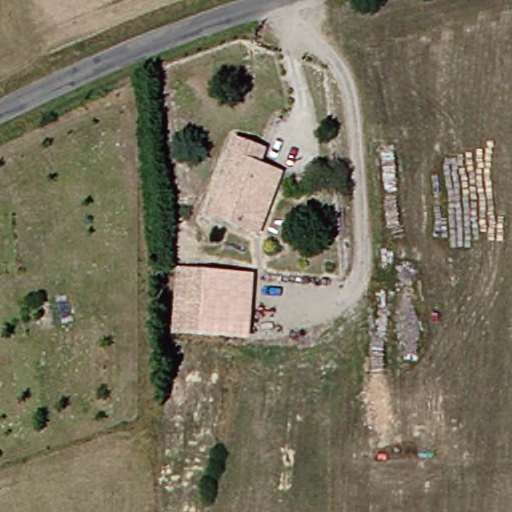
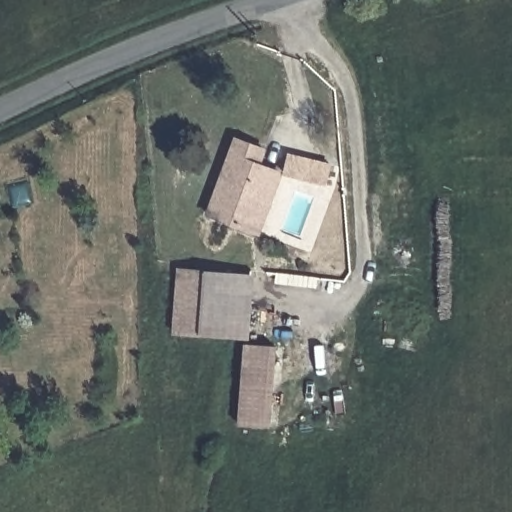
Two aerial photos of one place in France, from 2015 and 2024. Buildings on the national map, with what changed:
unchanged [(246,229),(209,210),(240,144),(260,155),(257,167),(278,178),(270,194),(254,233),(246,229)]
unchanged [(255,274),(250,340),(175,333),(179,269),(255,274)]
new [(275,346),(270,425),(239,423),(244,344),(275,346)]

